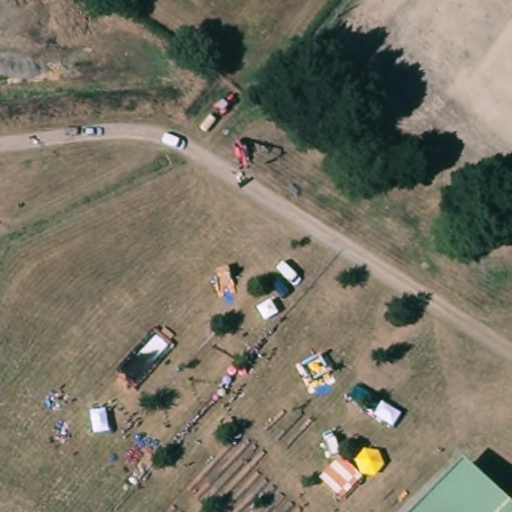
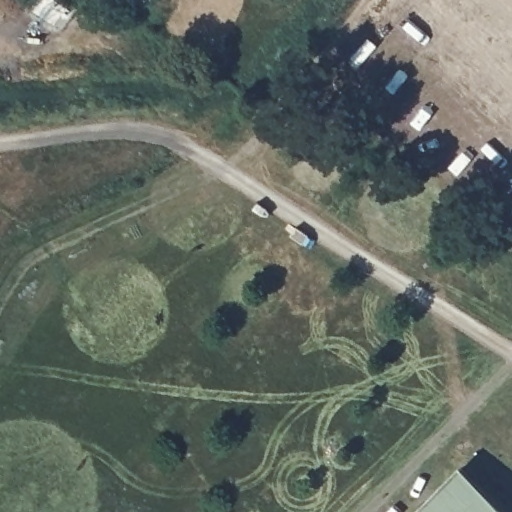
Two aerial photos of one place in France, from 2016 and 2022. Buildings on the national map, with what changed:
unchanged [(282,110),(273,124),(260,115),(270,100),(282,110)]
unchanged [(511,512),(416,512),(464,463),(511,512)]

